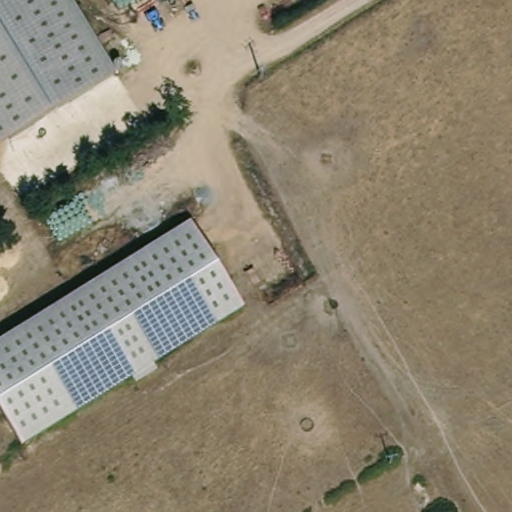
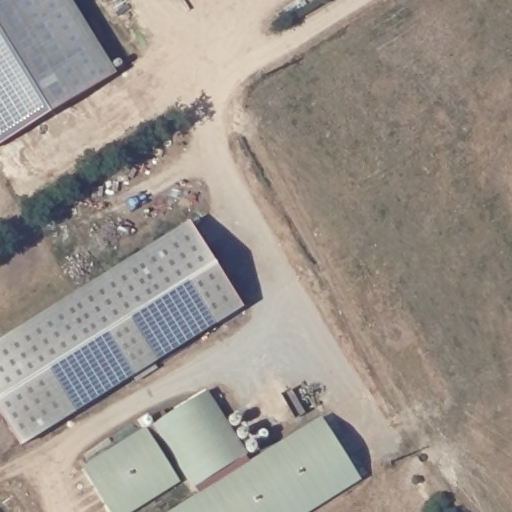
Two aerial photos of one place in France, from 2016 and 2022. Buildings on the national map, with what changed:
unchanged [(0,143),(0,0),(74,0),(118,69),(0,143)]
unchanged [(245,311),(24,443),(0,405),(0,338),(191,220),(245,311)]
new [(226,421),(236,413),(251,436),(262,431),(270,449),(321,416),(362,478),(308,512),(168,512),(196,494),(159,432),(152,437),(180,482),(132,512),(110,512),(81,467),(207,390),(226,421)]

